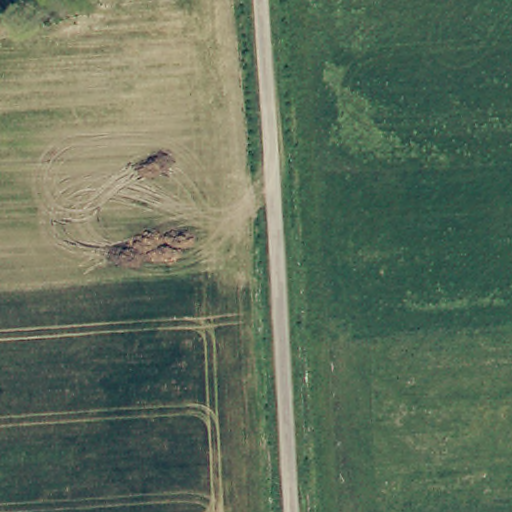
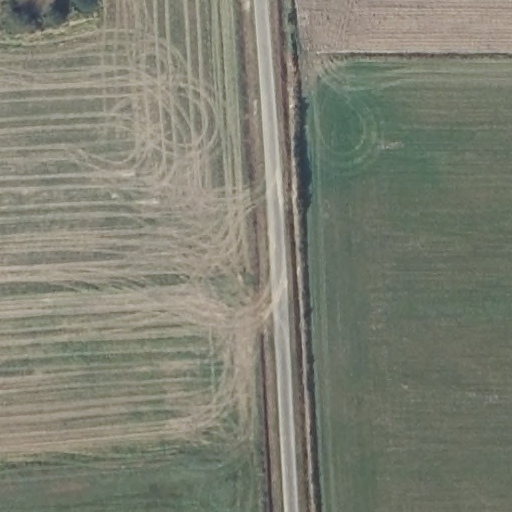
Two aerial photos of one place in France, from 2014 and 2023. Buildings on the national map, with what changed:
[]

